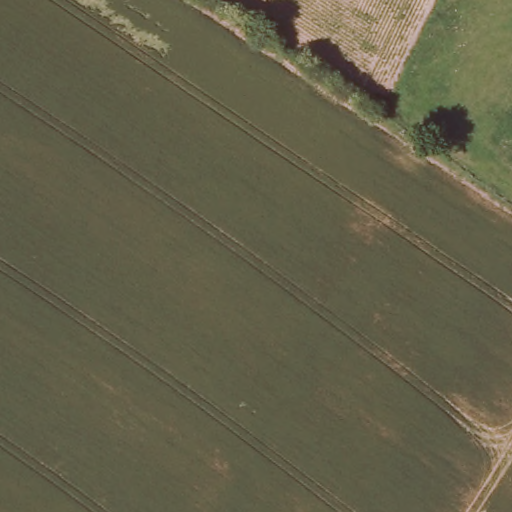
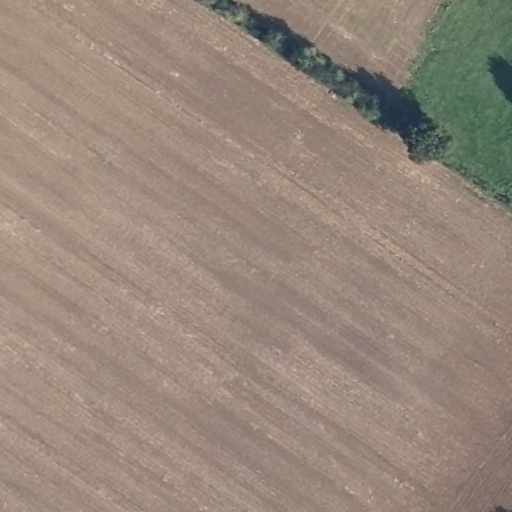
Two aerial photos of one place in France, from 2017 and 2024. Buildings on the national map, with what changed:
[]

